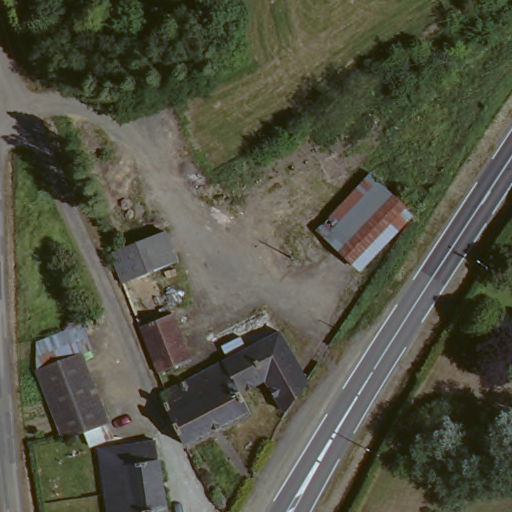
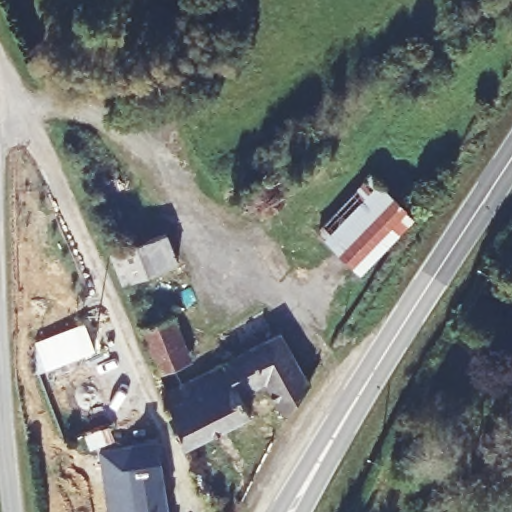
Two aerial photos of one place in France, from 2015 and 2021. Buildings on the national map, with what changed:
unchanged [(415,221),(362,275),(321,237),(373,182),(415,221)]
unchanged [(125,286),(111,256),(164,237),(176,262),(125,286)]
unchanged [(215,336),(265,310),(277,334),(227,362),(215,336)]
unchanged [(141,330),(172,319),(191,366),(161,378),(141,330)]
unchanged [(227,362),(277,334),(280,332),(307,381),(303,387),(285,415),(266,379),(242,391),(251,412),(185,446),(162,395),(168,392),(227,362)]
demolished [(112,414),(102,419),(69,432),(52,394),(39,365),(51,358),(81,345),(112,414)]
unchanged [(157,448),(159,452),(169,512),(108,512),(99,458),(157,448)]

